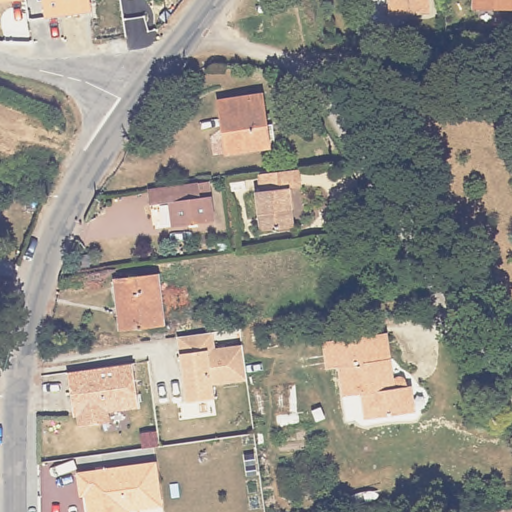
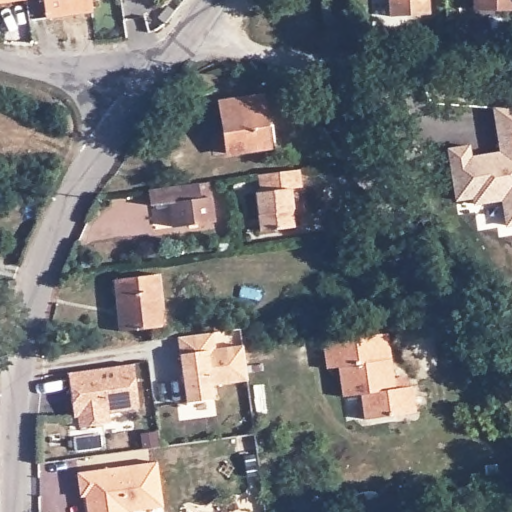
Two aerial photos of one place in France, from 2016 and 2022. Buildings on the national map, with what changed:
unchanged [(48,0),(42,1),(42,0),(48,0)]
unchanged [(391,15),(390,0),(426,0),(427,13),(391,15)]
unchanged [(474,10),(474,0),(512,0),(512,10),(474,10)]
unchanged [(265,95),(274,145),(233,154),(222,104),(265,95)]
new [(446,146),(470,142),(472,153),(498,149),(492,106),(512,106),(512,225),(505,225),(501,200),(473,204),(472,196),(454,199),(446,146)]
unchanged [(262,190),(260,174),(272,172),(301,168),(304,186),(290,188),(296,224),(262,229),(257,191),(262,190)]
unchanged [(202,198),(212,197),(216,223),(176,228),(172,203),(152,206),(150,189),(200,182),(202,198)]
unchanged [(122,332),(115,278),(159,272),(166,327),(122,332)]
unchanged [(393,368),(400,367),(403,368),(407,372),(409,377),(413,376),(417,404),(364,412),(360,387),(342,390),(338,360),(327,362),(323,334),(386,325),(393,368)]
unchanged [(216,331),(217,350),(244,345),(249,384),(212,391),(214,400),(184,403),(175,338),(216,331)]
unchanged [(132,362),(139,412),(109,415),(110,424),(74,429),(66,370),(132,362)]
unchanged [(162,509),(127,512),(128,512),(88,512),(86,494),(81,495),(79,471),(158,464),(162,509)]
new [(495,510),(496,512),(481,512),(495,510)]

